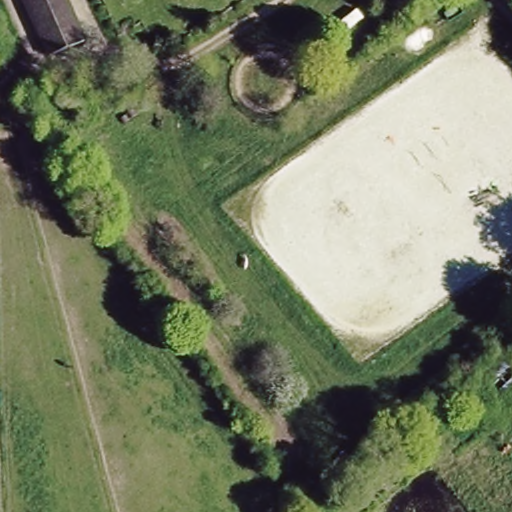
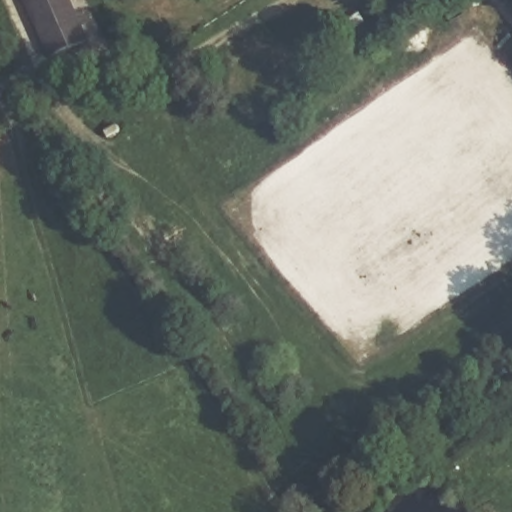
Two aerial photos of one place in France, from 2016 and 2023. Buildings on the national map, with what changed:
unchanged [(84,43),(49,53),(31,0),(69,0),(84,43)]
unchanged [(499,402),(480,379),(503,360),(512,370),(512,389),(499,402)]

